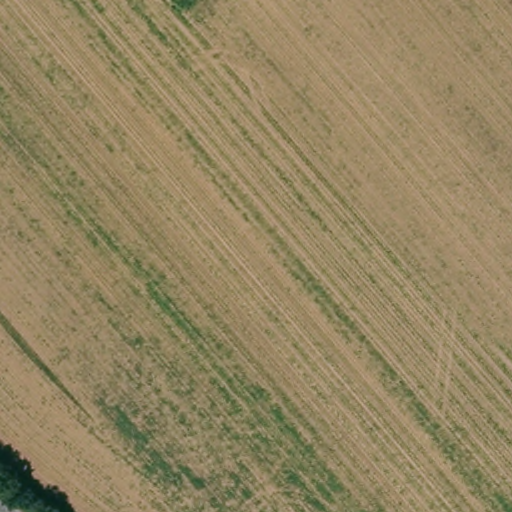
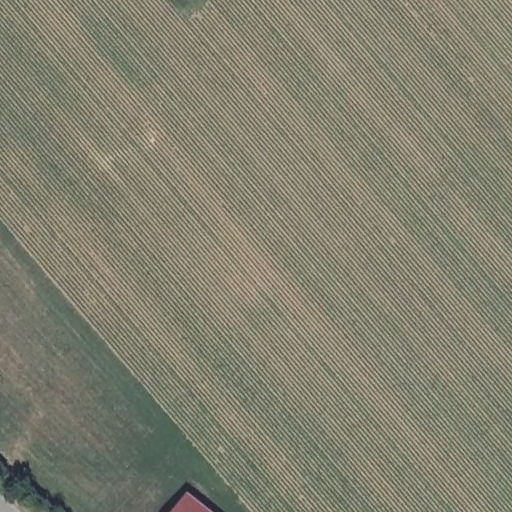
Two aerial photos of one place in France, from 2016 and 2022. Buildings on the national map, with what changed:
new [(188,495),(210,512),(174,512),(188,495)]

